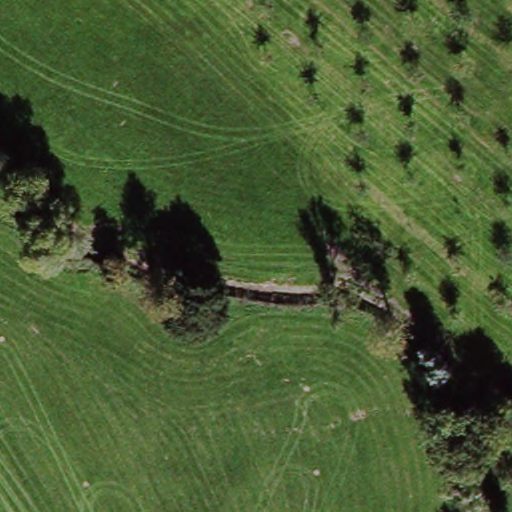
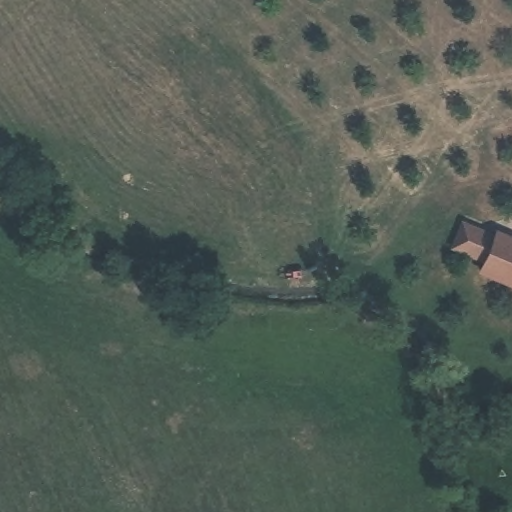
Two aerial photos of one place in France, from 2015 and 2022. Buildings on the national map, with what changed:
new [(492,230),(494,228),(512,237),(512,287),(477,273),(480,264),(448,249),(460,222),(492,230)]

